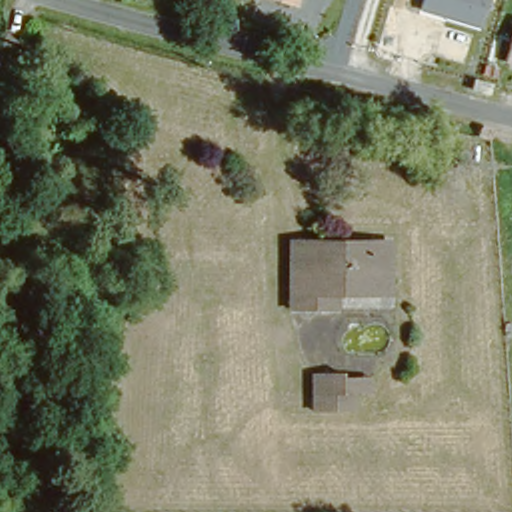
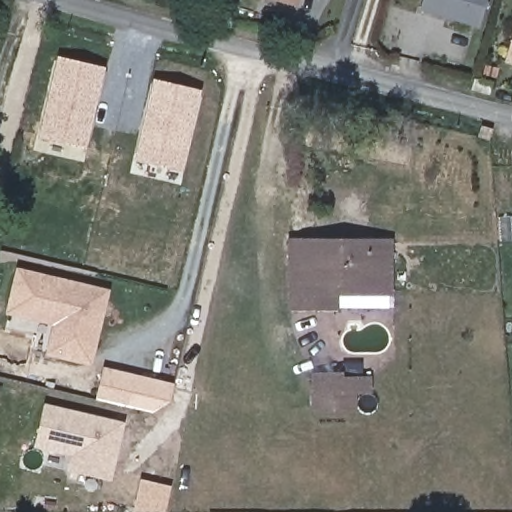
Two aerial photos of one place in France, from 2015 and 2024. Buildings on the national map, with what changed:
unchanged [(276,0),(301,0),(299,6),(276,0)]
unchanged [(487,0),(479,27),(422,10),(425,0),(487,0)]
unchanged [(512,43),(512,65),(505,63),(512,43)]
new [(58,56),(106,68),(86,150),(39,139),(58,56)]
new [(183,173),(135,161),(155,79),(202,90),(183,173)]
unchanged [(475,79),(495,84),(492,94),(472,89),(475,79)]
unchanged [(290,287),(289,238),(311,238),(311,244),(365,244),(365,238),(387,238),(388,294),(335,290),(335,305),(291,307),(290,287)]
new [(111,289),(92,368),(46,356),(52,326),(5,314),(16,268),(111,289)]
new [(96,399),(104,367),(174,385),(170,402),(152,413),(96,399)]
unchanged [(353,407),(312,406),(311,372),(341,372),(341,379),(361,379),(370,379),(371,396),(361,396),(354,396),(353,407)]
new [(112,482),(67,472),(70,457),(35,449),(45,404),(126,423),(112,482)]

